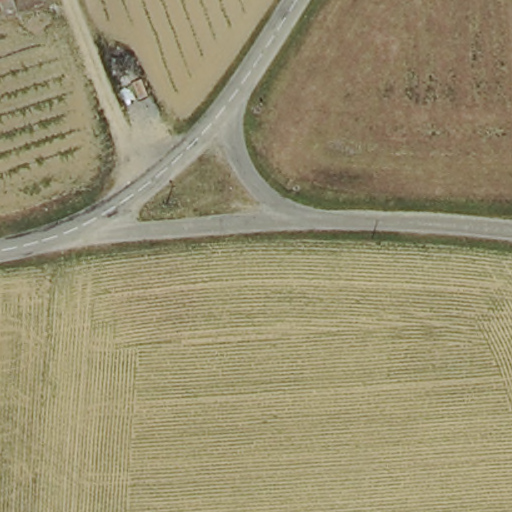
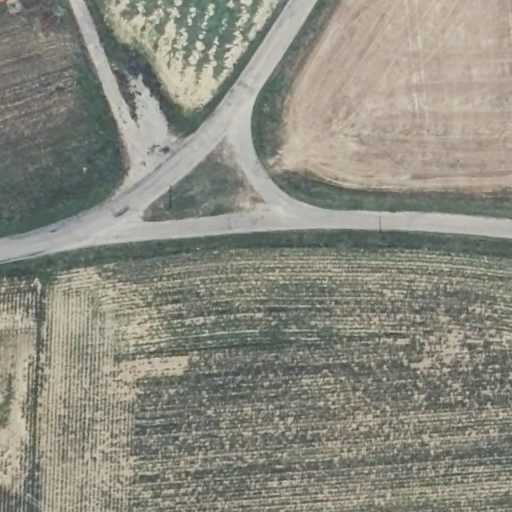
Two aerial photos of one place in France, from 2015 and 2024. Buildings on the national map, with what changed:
unchanged [(26,0),(0,10),(0,0),(26,0)]

